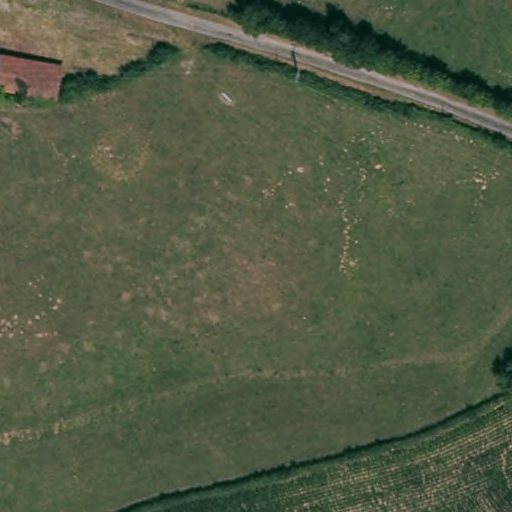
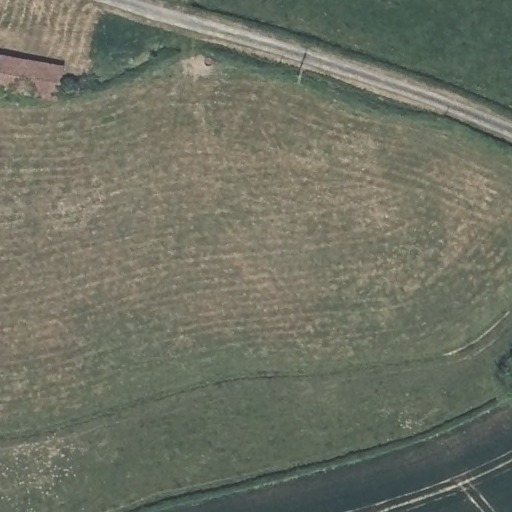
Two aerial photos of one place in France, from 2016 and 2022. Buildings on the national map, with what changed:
unchanged [(53,65),(51,90),(0,84),(0,57),(53,65)]

